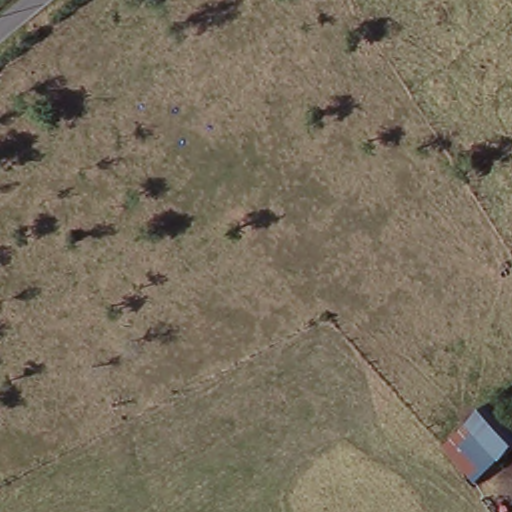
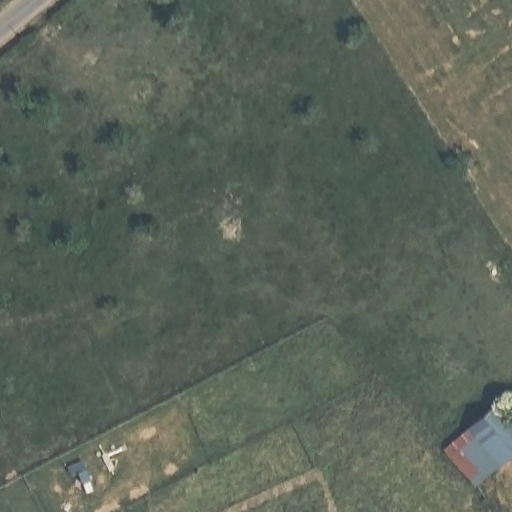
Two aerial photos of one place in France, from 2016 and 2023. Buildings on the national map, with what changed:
unchanged [(509,395),(512,393),(512,398),(509,395)]
unchanged [(445,448),(495,405),(506,419),(512,426),(512,455),(477,484),(445,448)]
unchanged [(506,419),(512,415),(512,426),(506,419)]

